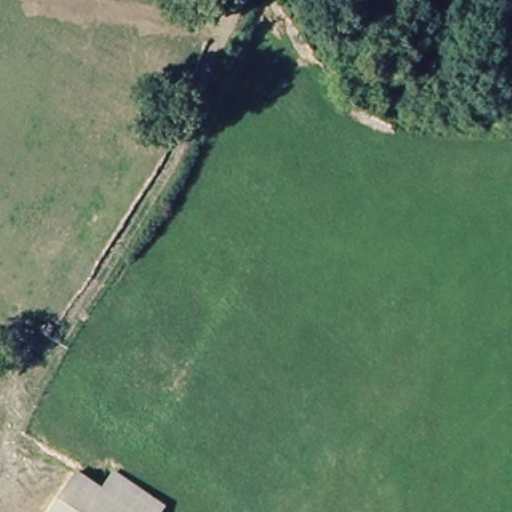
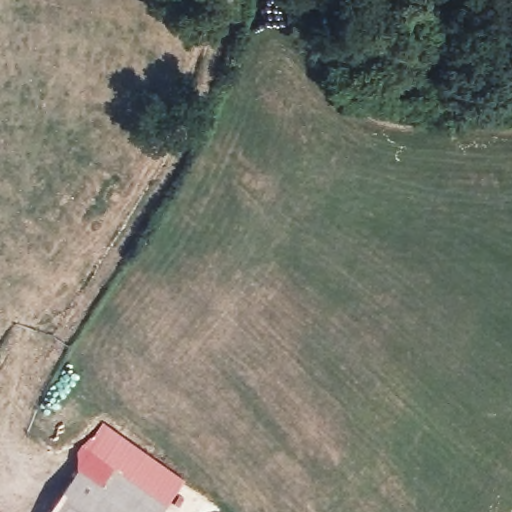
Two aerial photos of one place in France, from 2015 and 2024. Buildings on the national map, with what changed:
new [(113,474),(101,493),(75,476),(78,470),(77,451),(89,436),(94,437),(102,423),(184,479),(165,507),(113,474)]
unchanged [(101,493),(113,474),(165,507),(162,512),(52,512),(75,476),(101,493)]

